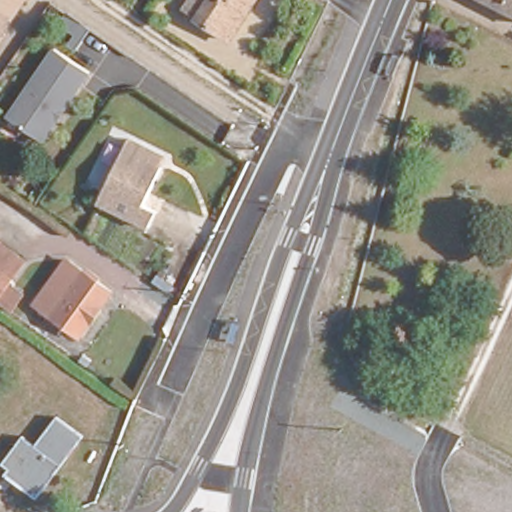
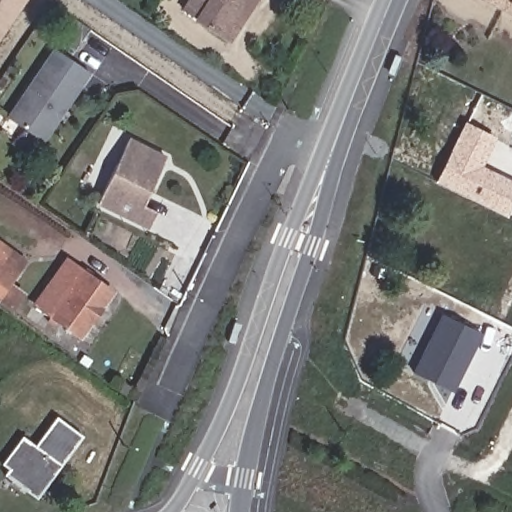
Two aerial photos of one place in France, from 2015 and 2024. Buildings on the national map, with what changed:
unchanged [(18,0),(8,17),(0,30),(0,0),(18,0)]
unchanged [(255,0),(230,38),(183,9),(188,0),(255,0)]
unchanged [(512,0),(512,17),(479,0),(512,0)]
unchanged [(90,75),(43,145),(6,119),(53,50),(90,75)]
new [(465,122),(496,138),(482,166),(512,181),(512,207),(507,217),(436,181),(465,122)]
unchanged [(134,151),(160,163),(154,174),(166,180),(146,222),(108,203),(134,151)]
unchanged [(2,248),(26,266),(15,281),(0,301),(0,251),(2,248)]
unchanged [(81,338),(50,316),(36,307),(51,283),(67,260),(112,292),(81,338)]
new [(442,315),(482,335),(453,393),(414,373),(442,315)]
unchanged [(2,477),(6,472),(0,465),(0,462),(20,437),(36,449),(55,420),(81,438),(36,501),(2,477)]

